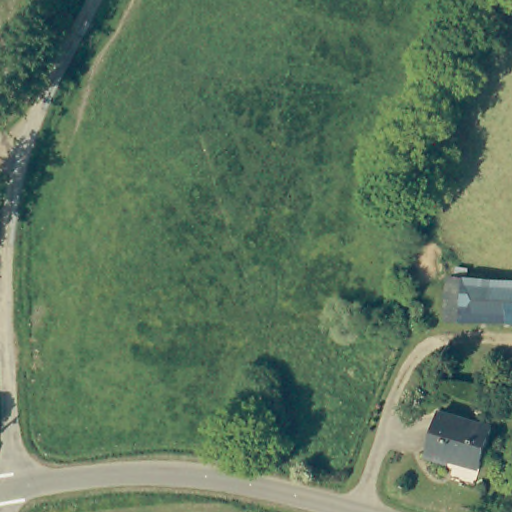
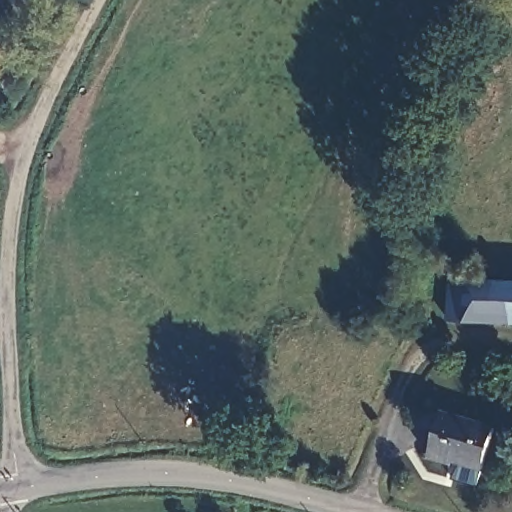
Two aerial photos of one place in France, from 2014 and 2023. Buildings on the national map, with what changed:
unchanged [(442,278),(512,280),(512,323),(441,320),(442,278)]
unchanged [(493,427),(481,470),(451,461),(450,465),(428,458),(441,412),(493,427)]

